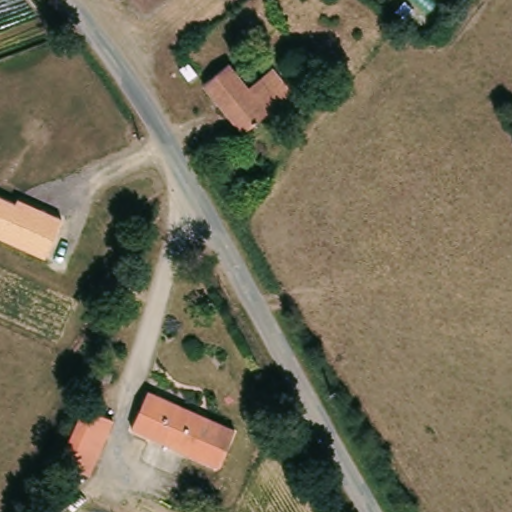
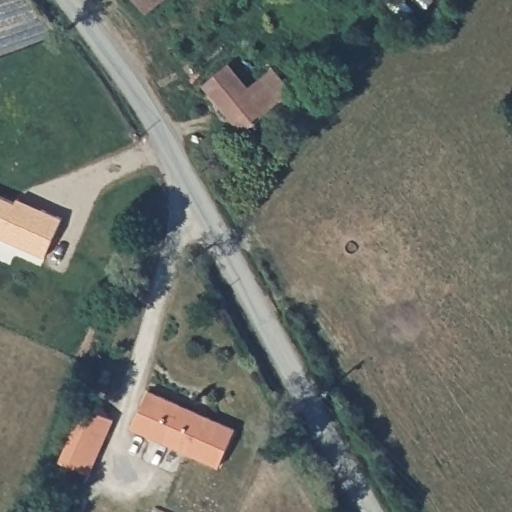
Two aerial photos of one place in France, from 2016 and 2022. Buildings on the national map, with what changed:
unchanged [(144,17),(131,0),(163,0),(144,17)]
unchanged [(203,82),(226,62),(247,85),(260,75),(262,77),(273,68),(292,92),(280,101),(282,103),(260,122),(243,134),(203,82)]
unchanged [(43,258),(0,240),(0,196),(16,202),(17,197),(61,216),(43,258)]
unchanged [(144,392),(238,426),(224,463),(130,432),(144,392)]
unchanged [(113,416),(92,472),(61,462),(82,405),(113,416)]

